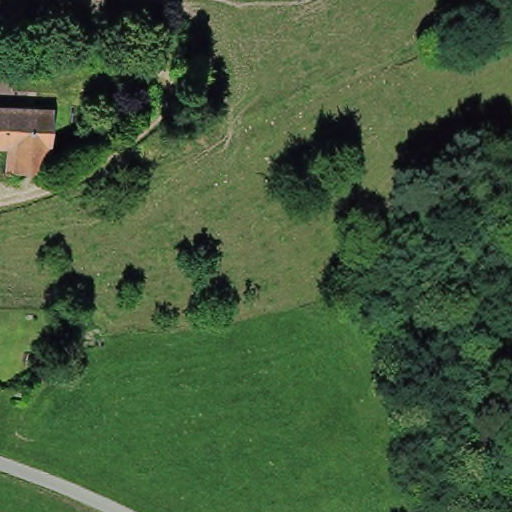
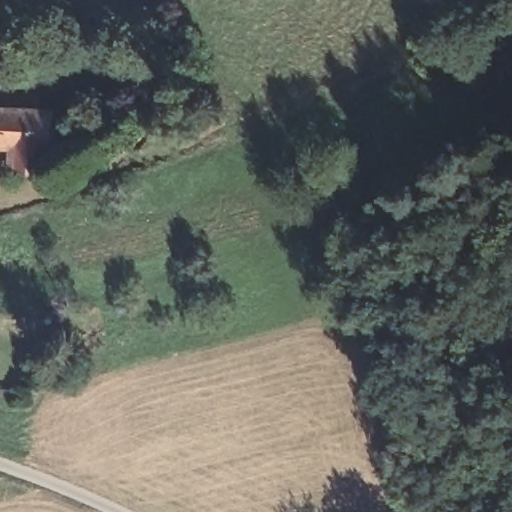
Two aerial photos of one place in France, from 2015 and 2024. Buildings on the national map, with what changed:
unchanged [(56,155),(12,151),(0,150),(0,108),(59,112),(56,155)]
unchanged [(54,179),(10,176),(12,151),(56,155),(54,179)]

